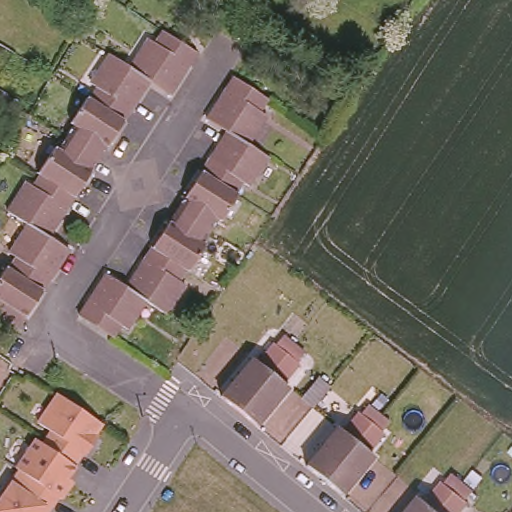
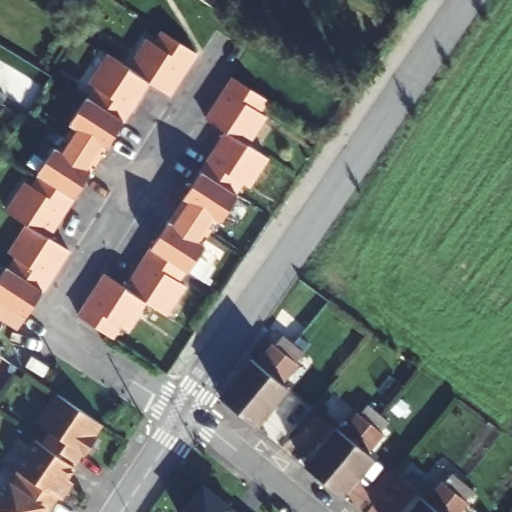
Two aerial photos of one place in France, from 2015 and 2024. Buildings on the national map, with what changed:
unchanged [(204,0),(217,0),(213,6),(204,0)]
unchanged [(125,65),(144,36),(153,41),(160,29),(194,51),(185,64),(181,61),(176,69),(179,73),(166,92),(147,79),(125,65)]
unchanged [(133,99),(128,96),(123,104),(128,108),(121,119),(84,95),(93,83),(89,80),(106,53),(125,65),(147,79),(133,99)]
unchanged [(203,116),(216,96),(221,99),(226,92),(221,89),(230,76),(264,99),(256,110),(264,114),(244,144),(223,129),(203,116)]
unchanged [(70,124),(68,123),(84,95),(121,119),(95,157),(63,136),(70,124)]
unchanged [(266,158),(248,184),(242,180),(234,193),(198,169),(205,158),(211,162),(216,154),(211,149),(223,129),(244,144),(266,158)]
unchanged [(71,194),(38,174),(36,172),(51,147),(55,149),(63,136),(95,157),(71,194)]
unchanged [(173,207),(198,169),(234,193),(238,195),(221,219),(218,217),(208,230),(173,207)]
unchanged [(44,233),(27,222),(5,208),(24,179),(33,184),(38,174),(71,194),(63,207),(58,204),(53,211),(58,214),(56,217),(45,233),(44,233)]
unchanged [(208,230),(201,243),(204,244),(188,269),(184,267),(149,244),(171,209),(173,207),(208,230)]
unchanged [(15,256),(8,252),(27,222),(44,233),(45,233),(66,248),(51,269),(47,267),(43,274),(47,277),(39,289),(7,268),(15,256)]
unchanged [(184,267),(176,279),(184,285),(166,313),(144,299),(123,284),(136,265),(141,269),(146,262),(141,258),(149,244),(184,267)]
unchanged [(0,315),(0,269),(3,265),(7,268),(39,289),(15,325),(0,315)]
unchanged [(144,299),(126,328),(118,323),(109,335),(75,313),(84,300),(88,304),(93,296),(88,294),(103,272),(123,284),(144,299)]
unchanged [(253,353),(257,356),(273,337),(276,339),(284,329),(294,337),(286,346),(269,367),(239,406),(221,391),(253,353)]
unchanged [(269,367),(286,346),(294,337),(304,345),(296,354),(299,357),(283,377),(287,381),(256,419),(239,406),(269,367)]
unchanged [(317,377),(328,385),(311,406),(300,398),(317,377)]
unchanged [(87,438),(90,440),(82,453),(78,451),(70,463),(71,464),(60,481),(65,484),(58,497),(54,494),(54,495),(53,497),(46,507),(40,504),(35,512),(0,512),(0,492),(15,469),(18,465),(14,463),(31,438),(34,434),(41,438),(49,426),(37,417),(53,392),(98,422),(87,438)]
unchanged [(337,424),(341,428),(358,408),(361,410),(369,401),(380,410),(373,418),(356,439),(324,478),(306,462),(337,424)]
unchanged [(356,439),(373,418),(380,410),(389,418),(381,428),(384,430),(369,449),(373,453),(342,492),(324,478),(356,439)]
unchanged [(426,496),(442,476),(444,478),(453,469),(465,479),(461,484),(459,487),(441,508),(438,512),(404,512),(421,492),(426,496)]
unchanged [(441,508),(459,487),(461,484),(465,479),(475,487),(467,497),(470,499),(459,512),(438,512),(441,508)]
new [(203,486),(217,498),(218,496),(233,508),(233,509),(237,512),(181,512),(203,486)]

